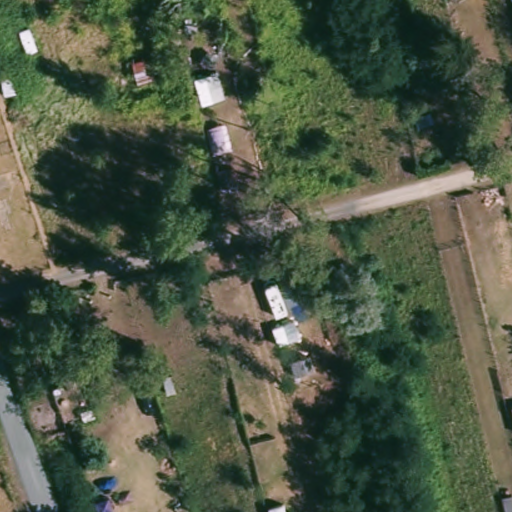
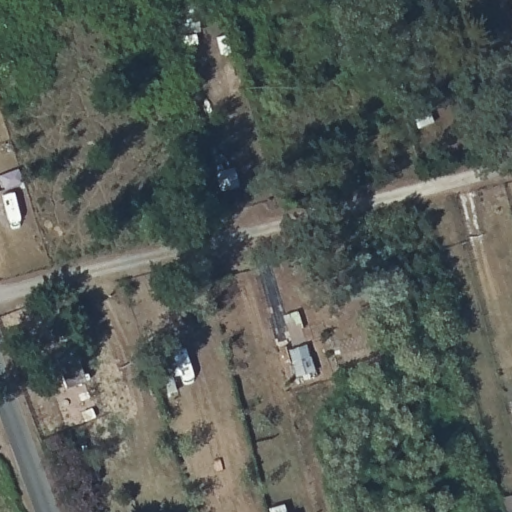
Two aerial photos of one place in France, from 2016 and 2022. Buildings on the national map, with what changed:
unchanged [(164,198),(150,153),(172,147),(183,195),(164,198)]
unchanged [(0,230),(0,197),(5,196),(11,210),(5,211),(9,226),(0,230)]
unchanged [(350,337),(335,342),(328,343),(319,313),(327,312),(341,308),(350,337)]
unchanged [(55,330),(64,362),(46,367),(37,335),(55,330)]

